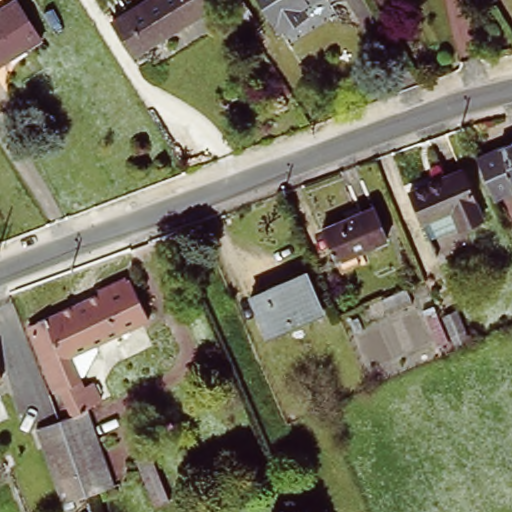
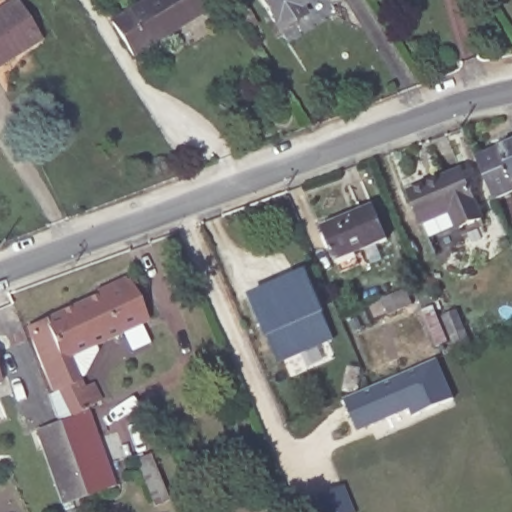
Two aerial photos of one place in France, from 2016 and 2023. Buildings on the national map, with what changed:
unchanged [(45,48),(0,76),(0,0),(15,0),(45,48)]
unchanged [(212,17),(136,66),(115,31),(168,0),(201,0),(212,17)]
unchanged [(299,7),(304,15),(277,30),(260,0),(309,0),(299,7)]
unchanged [(512,198),(493,206),(475,164),(512,148),(512,198)]
unchanged [(463,173),(484,219),(454,232),(446,215),(422,225),(408,197),(463,173)]
unchanged [(372,211),(386,242),(337,263),(325,232),(372,211)]
unchanged [(303,273),(319,312),(267,335),(250,297),(303,273)]
unchanged [(75,418),(65,392),(58,393),(32,327),(105,294),(103,287),(130,277),(133,282),(136,281),(152,320),(147,322),(150,332),(135,338),(130,330),(75,353),(87,385),(96,382),(106,402),(90,411),(118,485),(90,495),(65,422),(75,418)]
unchanged [(401,290),(410,307),(384,319),(376,302),(401,290)]
unchanged [(440,316),(454,311),(457,318),(469,343),(455,349),(444,324),(440,316)]
new [(435,357),(453,399),(413,416),(410,408),(374,424),(374,423),(357,430),(344,399),(435,357)]
unchanged [(1,386),(0,386),(0,384),(1,386)]
unchanged [(65,422),(90,495),(91,497),(68,506),(41,431),(65,422)]
unchanged [(158,507),(147,475),(142,465),(155,461),(159,472),(170,504),(158,507)]
new [(353,512),(318,512),(311,496),(341,483),(353,512)]

